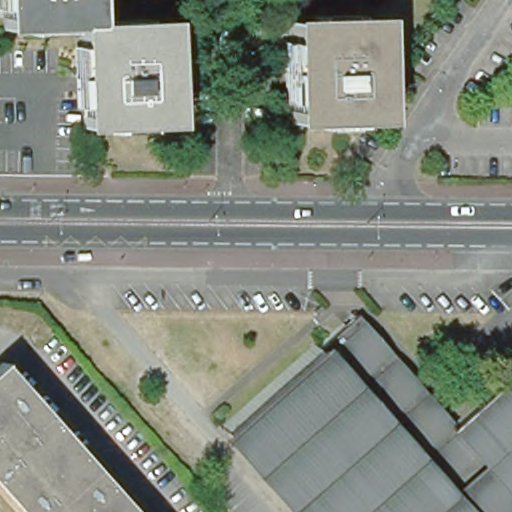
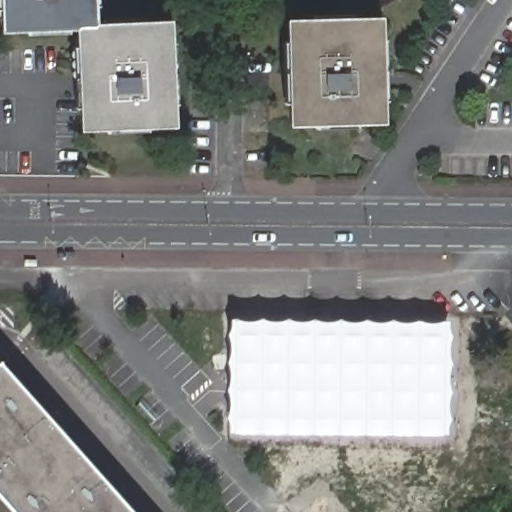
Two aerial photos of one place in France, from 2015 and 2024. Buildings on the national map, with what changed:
unchanged [(26,36),(26,27),(1,28),(1,9),(0,8),(0,0),(99,0),(99,7),(93,7),(93,26),(77,27),(66,27),(66,34),(26,36)]
unchanged [(314,129),(314,122),(289,122),(289,102),(282,102),(282,39),(289,39),(289,20),(312,19),(312,11),(352,10),(353,18),(378,17),(379,37),(385,37),(386,58),(386,87),(387,101),(379,101),(380,121),(354,121),(354,127),(314,129)]
unchanged [(105,134),(105,127),(79,127),(79,107),(72,107),(71,88),(71,62),(70,46),(78,46),(77,27),(93,26),(103,26),(103,20),(143,18),(143,25),(168,24),(168,44),(175,43),(177,107),(169,107),(170,125),(146,126),(145,132),(105,134)]
new [(219,430),(219,312),(442,314),(443,432),(219,430)]
demolished [(447,421),(503,371),(512,381),(512,512),(294,512),(222,432),(351,313),(447,421)]
unchanged [(16,381),(56,425),(60,422),(67,430),(63,433),(135,512),(14,512),(0,497),(0,363),(16,381)]

